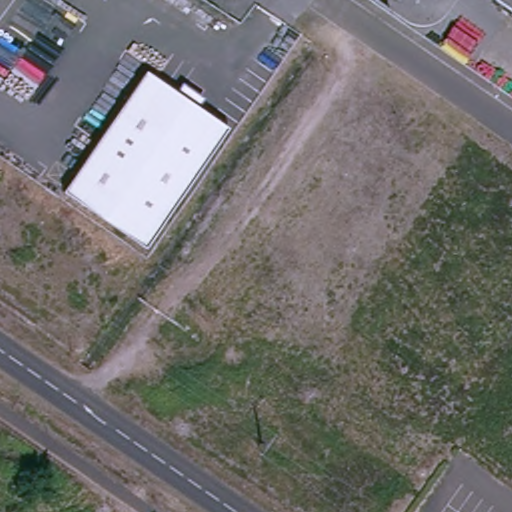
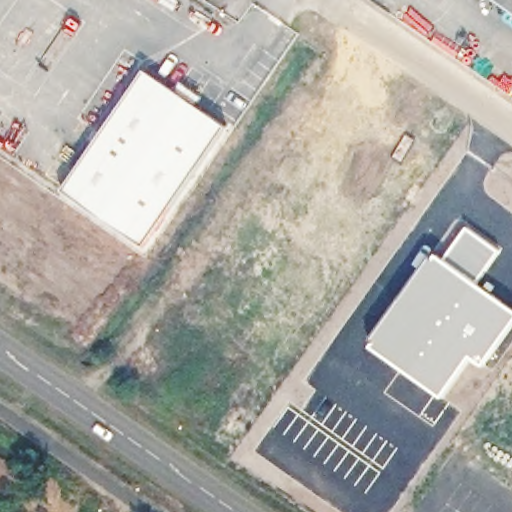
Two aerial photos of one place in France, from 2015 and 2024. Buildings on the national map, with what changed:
unchanged [(512,16),(489,0),(512,0),(512,16)]
unchanged [(143,68),(226,125),(143,246),(60,189),(143,68)]
new [(466,225),(501,249),(479,283),(443,258),(466,225)]
new [(434,251),(443,258),(479,283),(512,306),(512,327),(483,367),(471,359),(442,399),(368,346),(382,322),(434,251)]

